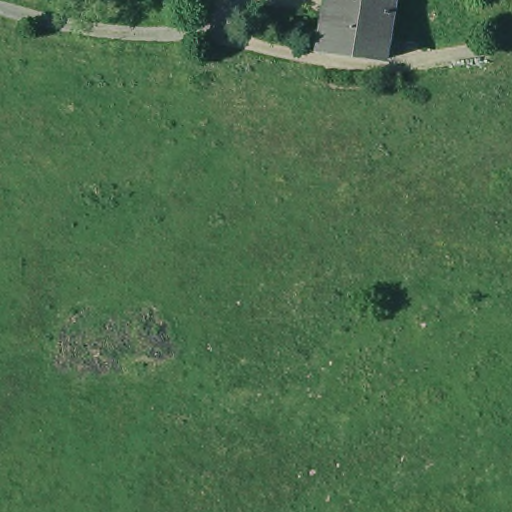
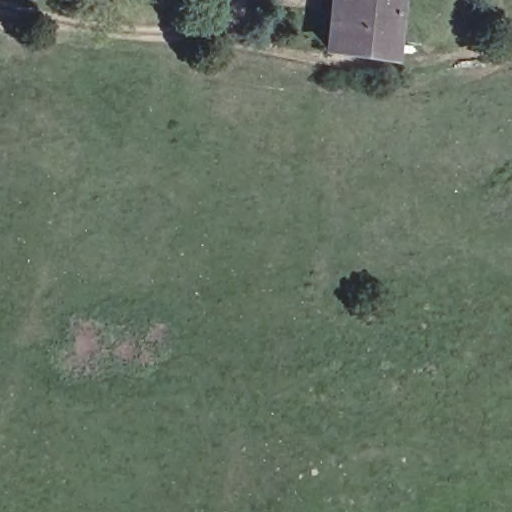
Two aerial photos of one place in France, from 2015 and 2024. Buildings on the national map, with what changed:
unchanged [(406,58),(320,49),(324,0),(409,0),(406,58)]

